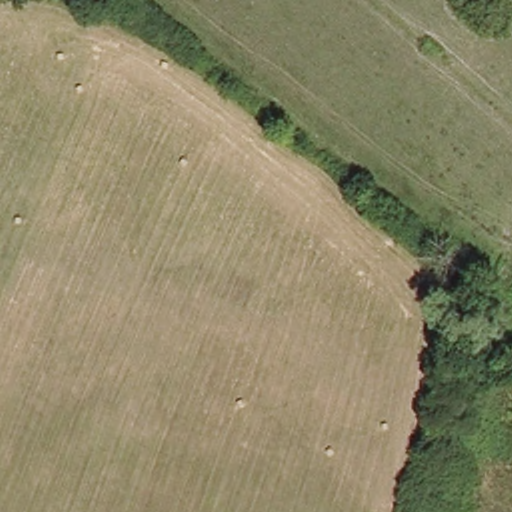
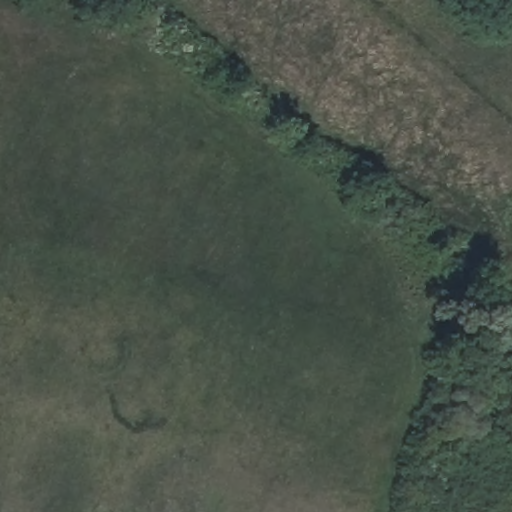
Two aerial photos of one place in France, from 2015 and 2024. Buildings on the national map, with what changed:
[]

